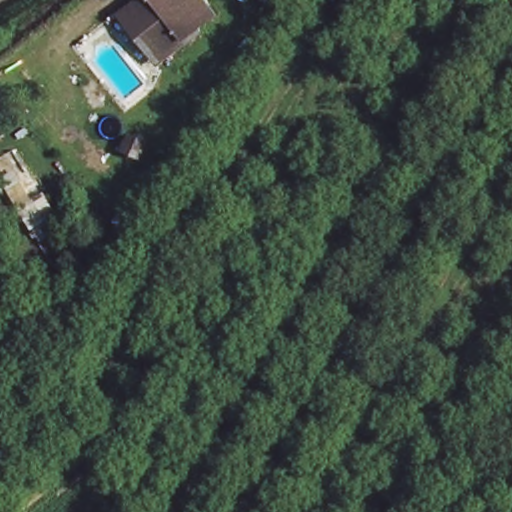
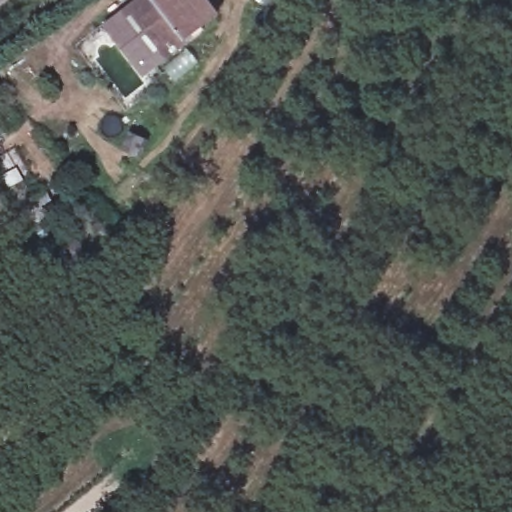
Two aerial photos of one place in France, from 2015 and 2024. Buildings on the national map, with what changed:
unchanged [(144,2),(147,0),(217,0),(228,14),(180,50),(170,57),(134,9),(144,2)]

